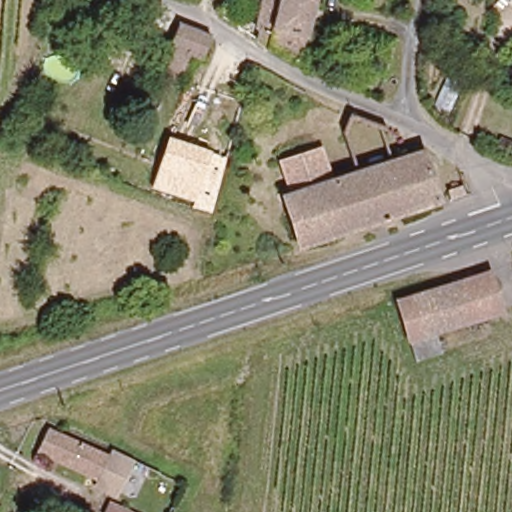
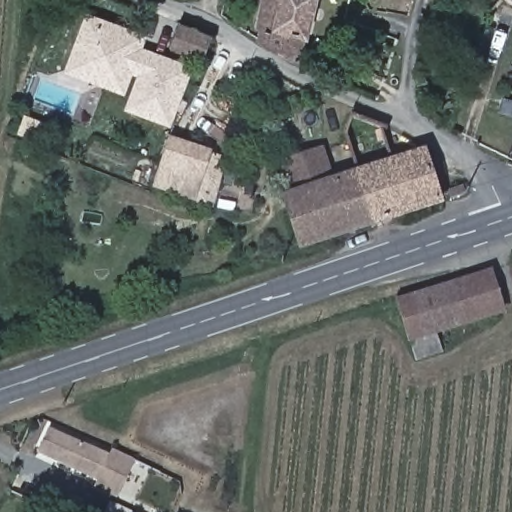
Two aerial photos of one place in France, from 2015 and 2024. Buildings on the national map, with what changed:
unchanged [(260,29),(266,0),(280,0),(269,44),(260,40),(260,29)]
unchanged [(280,0),(315,0),(300,59),(269,44),(280,0)]
new [(171,127),(124,110),(137,76),(132,74),(125,95),(64,71),(87,12),(149,34),(143,47),(193,65),(171,127)]
unchanged [(200,48),(191,44),(168,36),(173,15),(208,27),(200,48)]
unchanged [(281,195),(290,192),(329,180),(352,172),(339,132),(349,112),(380,124),(390,158),(419,150),(436,200),(298,245),(281,195)]
unchanged [(273,145),(314,133),(329,180),(290,192),(273,145)]
unchanged [(171,137),(214,150),(197,203),(153,189),(171,137)]
unchanged [(418,357),(415,349),(396,295),(487,266),(500,305),(439,323),(444,340),(446,348),(418,357)]
unchanged [(52,430),(110,456),(113,457),(100,483),(97,481),(40,455),(52,430)]
unchanged [(112,446),(136,457),(120,497),(95,487),(97,481),(100,483),(113,457),(110,456),(112,446)]
unchanged [(131,512),(108,512),(112,503),(131,512)]

